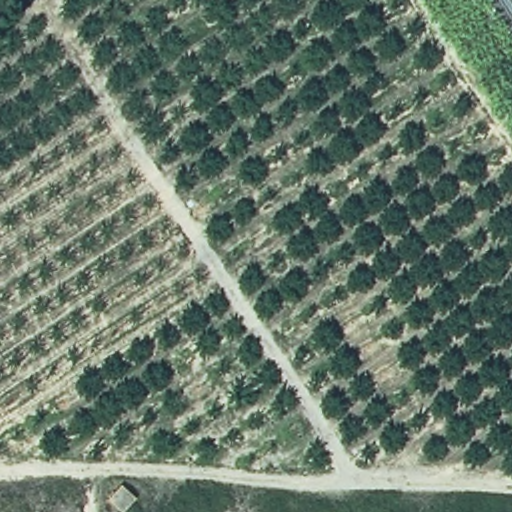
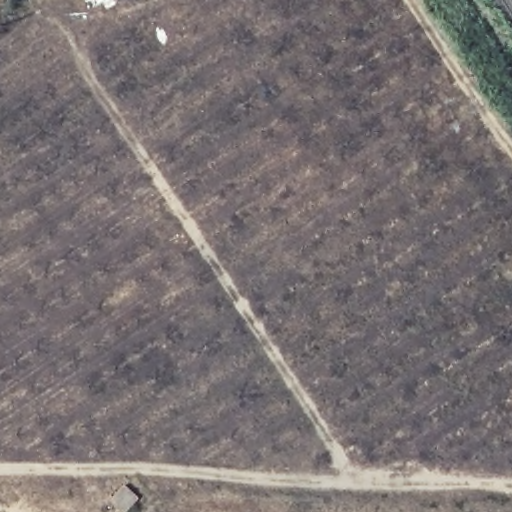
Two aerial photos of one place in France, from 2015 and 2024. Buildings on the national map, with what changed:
unchanged [(138,504),(129,512),(114,512),(105,503),(123,487),(138,504)]

